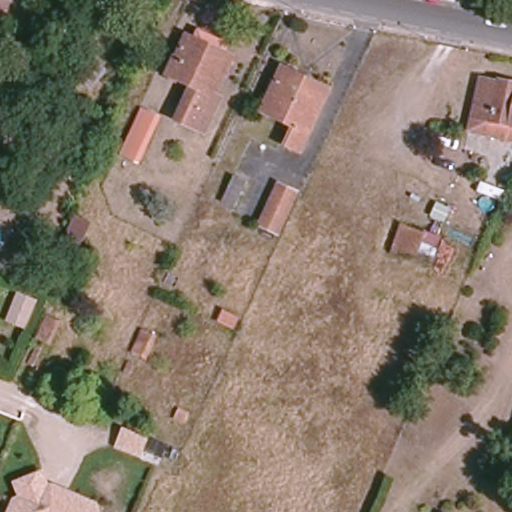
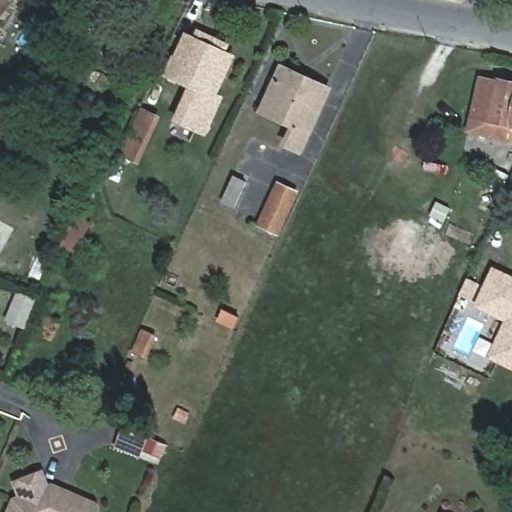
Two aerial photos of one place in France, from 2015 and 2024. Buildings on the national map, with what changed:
unchanged [(0,23),(0,0),(2,0),(11,7),(0,23)]
unchanged [(191,90),(169,79),(188,38),(235,61),(217,99),(223,102),(207,138),(175,122),(191,90)]
unchanged [(295,131),(263,114),(284,70),(332,94),(303,155),(287,147),(295,131)]
unchanged [(469,130),(482,76),(512,83),(512,139),(469,130)]
unchanged [(144,107),(160,115),(139,161),(123,153),(144,107)]
new [(489,164),(512,174),(504,191),(482,182),(489,164)]
unchanged [(232,177),(247,182),(234,211),(219,205),(232,177)]
unchanged [(278,232),(260,224),(280,183),(298,191),(278,232)]
unchanged [(76,215),(91,222),(77,253),(62,246),(76,215)]
unchanged [(404,255),(412,229),(435,235),(426,262),(404,255)]
new [(491,357),(507,321),(476,307),(491,272),(512,281),(512,367),(491,357)]
unchanged [(38,300),(27,329),(8,322),(19,293),(38,300)]
unchanged [(145,442),(139,457),(116,447),(122,432),(145,442)]
unchanged [(19,502),(13,488),(39,477),(44,492),(48,493),(62,500),(63,500),(66,498),(96,511),(97,512),(8,512),(11,505),(19,502)]

